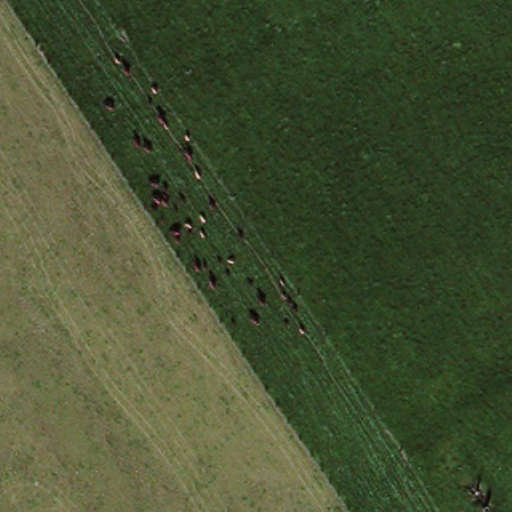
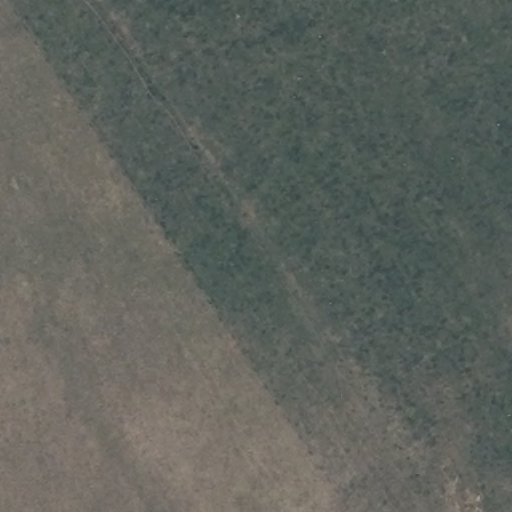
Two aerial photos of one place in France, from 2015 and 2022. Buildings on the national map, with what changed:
[]

